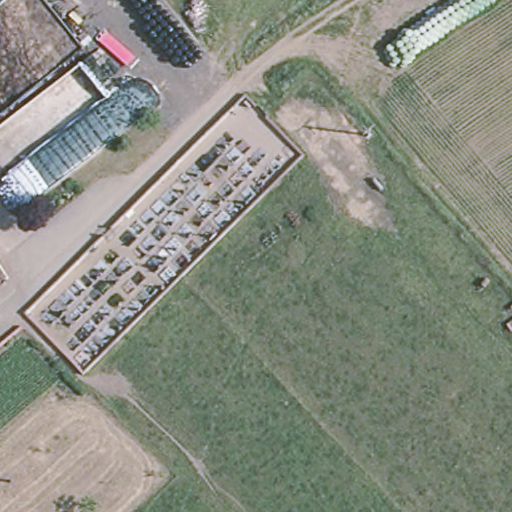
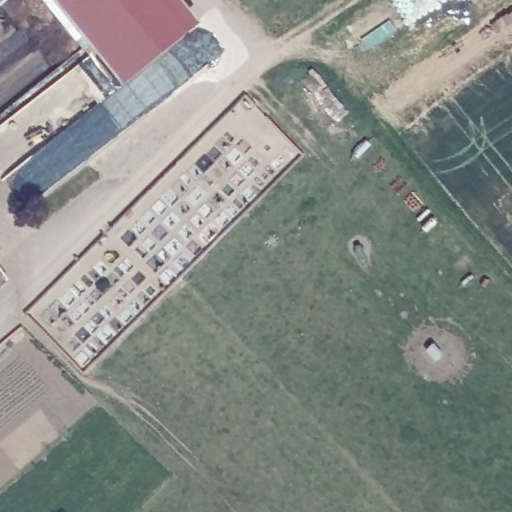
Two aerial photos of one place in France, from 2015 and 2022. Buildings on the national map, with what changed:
new [(200,22),(123,84),(55,0),(181,0),(200,22)]
demolished [(0,277),(0,261),(7,270),(0,277)]
new [(0,279),(0,277),(1,278),(0,279)]

